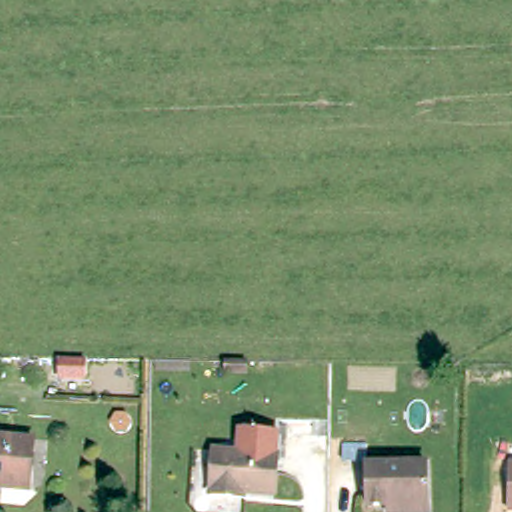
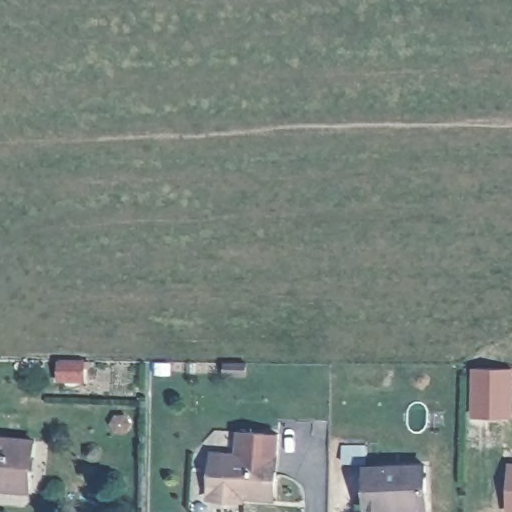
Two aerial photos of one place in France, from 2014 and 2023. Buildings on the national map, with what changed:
new [(472,367),(512,369),(512,419),(470,417),(472,367)]
unchanged [(26,497),(0,493),(0,444),(30,447),(26,497)]
unchanged [(232,497),(214,497),(215,452),(277,452),(277,492),(247,491),(247,497),(232,497)]
unchanged [(424,512),(389,512),(389,508),(367,512),(363,475),(423,462),(427,487),(423,488),(425,503),(427,512),(424,512)]

